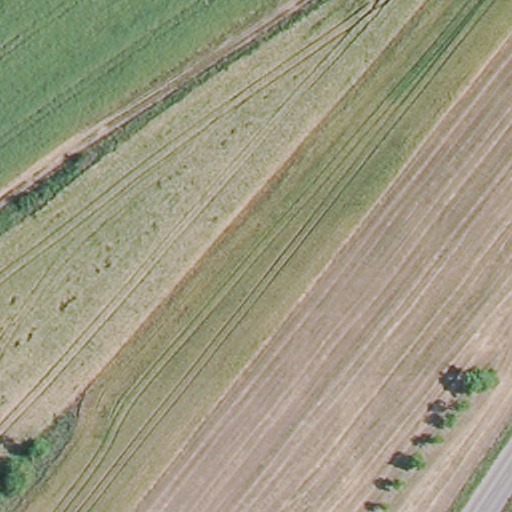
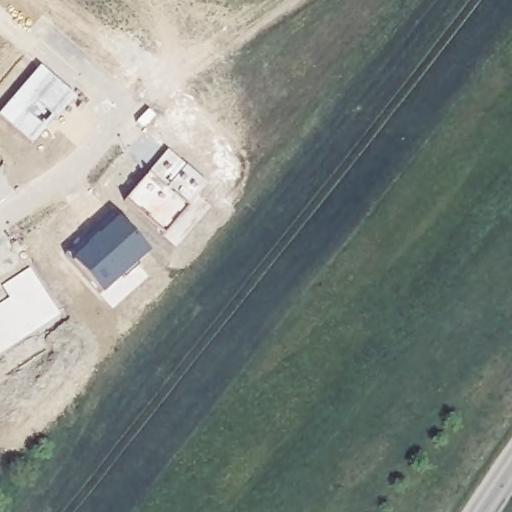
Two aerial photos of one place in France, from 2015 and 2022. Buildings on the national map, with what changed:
new [(42,65),(75,92),(35,143),(0,111),(42,65)]
new [(210,182),(165,234),(127,198),(167,149),(210,182)]
new [(151,249),(103,290),(75,258),(122,213),(151,249)]
new [(10,299),(3,286),(29,268),(60,315),(0,355),(0,304),(10,299)]

